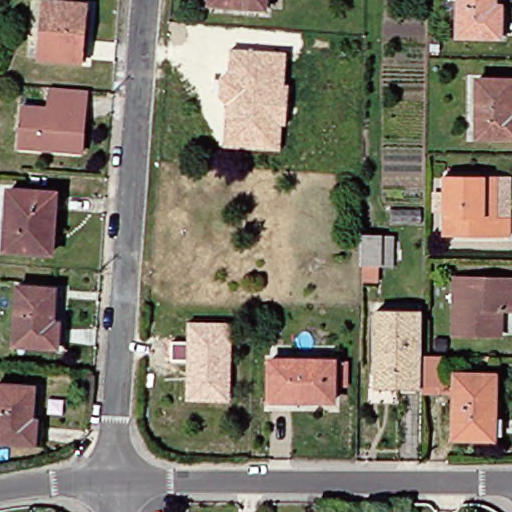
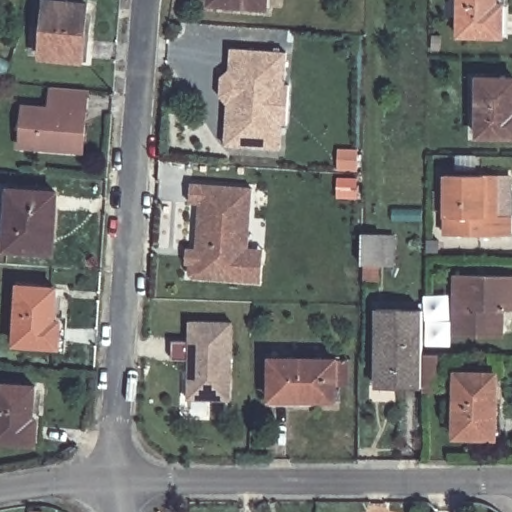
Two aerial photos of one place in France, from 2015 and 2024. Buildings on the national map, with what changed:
unchanged [(89,4),(84,60),(42,56),(48,0),(89,4)]
unchanged [(268,7),(212,3),(213,0),(269,0),(268,7)]
unchanged [(497,9),(504,9),(503,40),(461,39),(462,0),(497,0),(497,9)]
unchanged [(225,146),(227,103),(220,95),(221,78),(230,70),(231,49),(231,48),(287,52),(285,85),(289,85),(286,126),(282,126),(281,152),(225,146)]
unchanged [(512,78),(512,136),(481,135),(481,78),(512,78)]
unchanged [(79,150),(26,146),(29,105),(55,107),(57,86),(94,89),(92,112),(89,151),(79,150)]
unchanged [(488,174),(487,216),(512,216),(512,235),(446,234),(447,174),(488,174)]
unchanged [(487,216),(488,174),(512,175),(512,216),(487,216)]
new [(252,187),(249,249),(263,250),(261,282),(189,278),(189,266),(185,265),(186,249),(195,249),(197,205),(190,204),(191,183),(252,187)]
unchanged [(46,251),(7,248),(12,189),(58,192),(56,231),(54,251),(46,251)]
unchanged [(373,243),(390,244),(390,274),(373,274),(373,243)]
unchanged [(491,336),(456,335),(456,275),(512,275),(512,310),(500,310),(500,336),(491,336)]
unchanged [(57,288),(55,319),(61,320),(59,345),(15,342),(20,285),(57,288)]
unchanged [(377,386),(378,310),(422,310),(421,387),(377,386)]
unchanged [(186,400),(187,359),(172,359),(172,343),(188,343),(188,321),(232,323),(230,402),(186,400)]
unchanged [(442,385),(425,385),(426,353),(442,354),(442,385)]
unchanged [(336,399),(272,399),(272,358),(336,360),(336,399)]
unchanged [(498,438),(457,437),(459,373),(500,374),(498,438)]
unchanged [(33,418),(39,419),(37,444),(0,440),(0,383),(36,387),(33,418)]
unchanged [(392,512),(392,510),(401,512),(392,512)]

